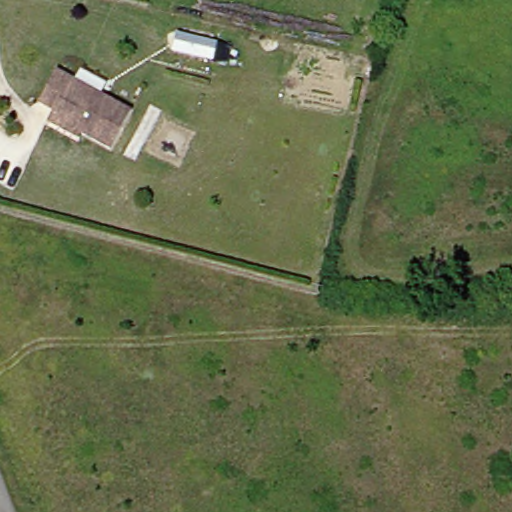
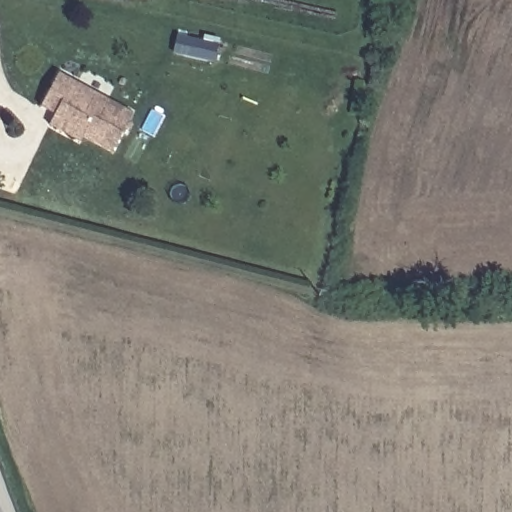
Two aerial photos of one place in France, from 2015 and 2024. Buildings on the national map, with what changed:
unchanged [(228,62),(191,56),(195,37),(231,45),(228,62)]
unchanged [(50,122),(57,112),(40,102),(63,74),(122,112),(131,119),(111,155),(86,137),(80,144),(50,122)]

